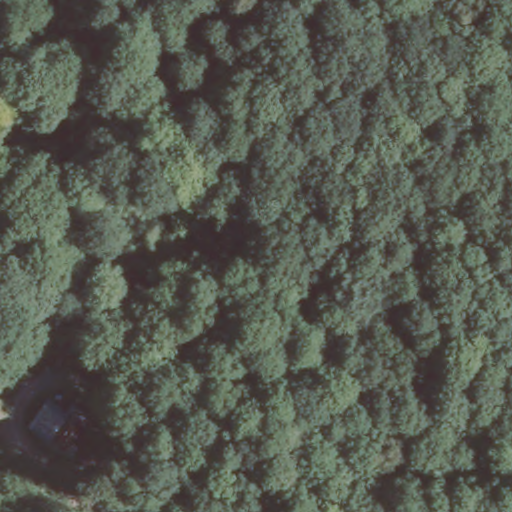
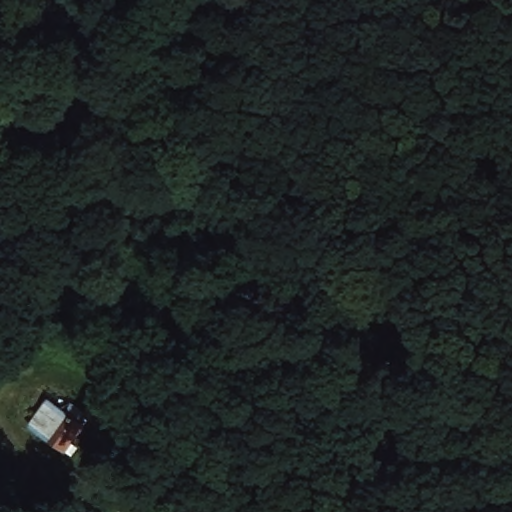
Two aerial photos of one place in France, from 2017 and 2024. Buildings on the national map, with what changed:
unchanged [(81,423),(70,442),(81,450),(74,463),(27,429),(47,401),(81,423)]

